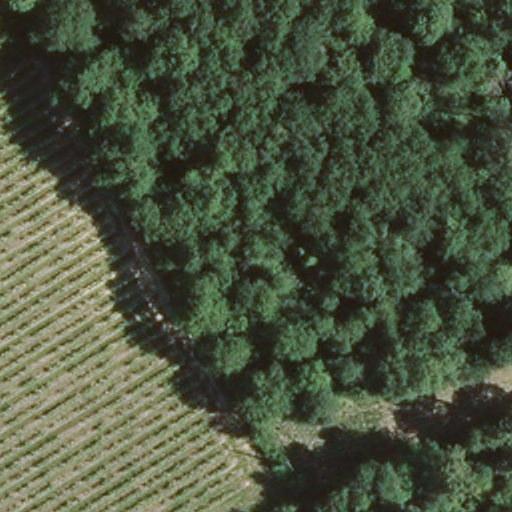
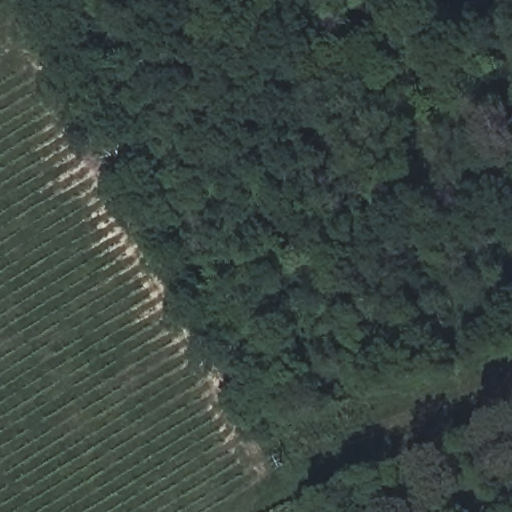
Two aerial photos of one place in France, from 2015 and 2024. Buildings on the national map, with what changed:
unchanged [(287,496),(296,512),(255,512),(287,496)]

